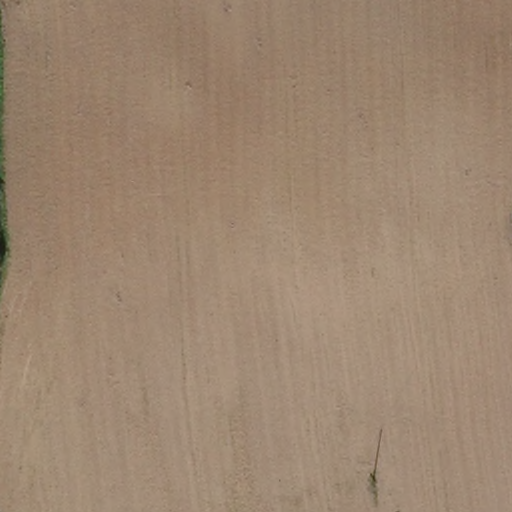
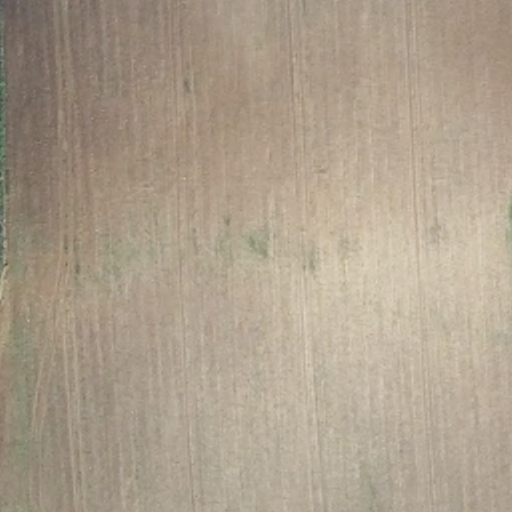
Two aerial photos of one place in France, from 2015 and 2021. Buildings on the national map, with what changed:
[]

